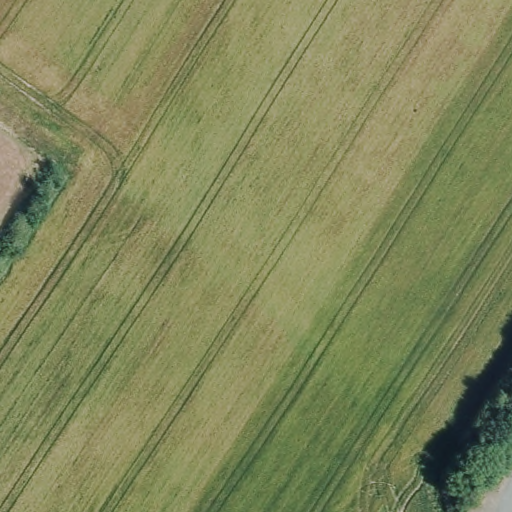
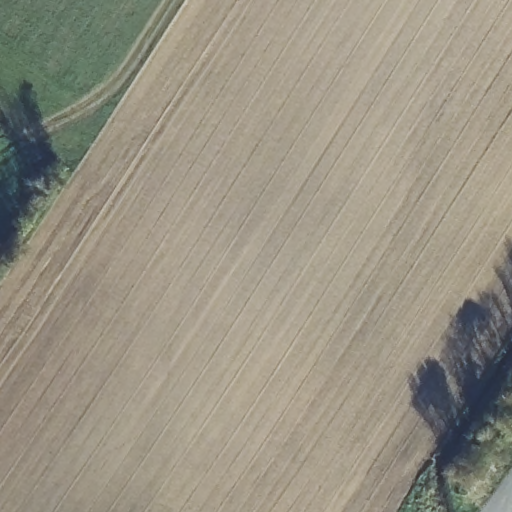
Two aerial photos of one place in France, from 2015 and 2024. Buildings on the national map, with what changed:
[]

